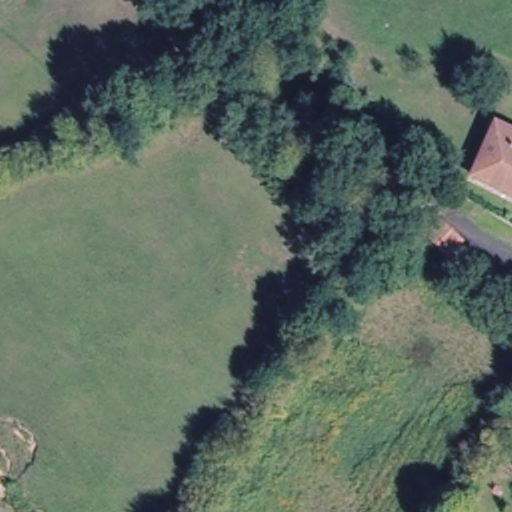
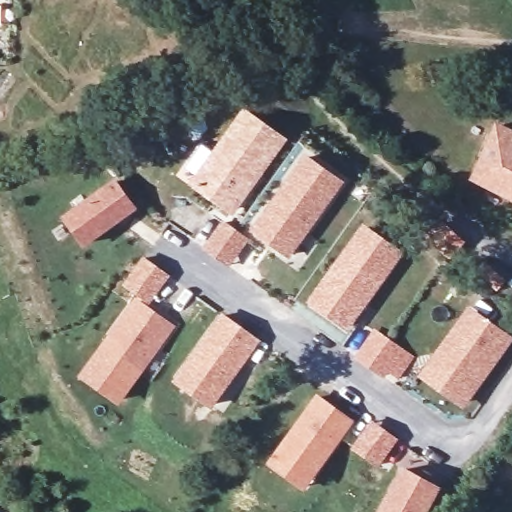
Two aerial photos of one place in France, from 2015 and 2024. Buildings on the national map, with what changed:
new [(187,185),(244,105),(288,138),(234,216),(187,185)]
unchanged [(512,191),(472,170),(501,118),(512,123),(512,191)]
new [(275,205),(296,177),(307,160),(342,185),(332,199),(289,258),(255,233),(270,212),(275,205)]
new [(63,216),(115,177),(137,208),(86,246),(63,216)]
unchanged [(450,249),(425,233),(436,216),(460,232),(450,249)]
new [(364,223),(405,253),(348,332),(307,303),(364,223)]
new [(237,232),(250,241),(230,267),(219,258),(237,232)]
new [(149,295),(137,287),(125,278),(144,253),(156,261),(167,270),(149,295)]
new [(178,325),(121,405),(80,375),(136,297),(178,325)]
new [(468,304),(512,335),(512,345),(465,408),(417,376),(468,304)]
new [(245,325),(256,334),(241,353),(209,398),(175,374),(222,309),(245,325)]
new [(375,327),(415,356),(398,379),(388,372),(384,378),(354,357),(375,327)]
new [(316,394),(356,421),(306,488),(268,462),(316,394)]
new [(377,460),(366,452),(355,443),(373,417),(385,426),(396,434),(377,460)]
new [(438,478),(419,512),(375,512),(378,506),(405,459),(438,478)]

